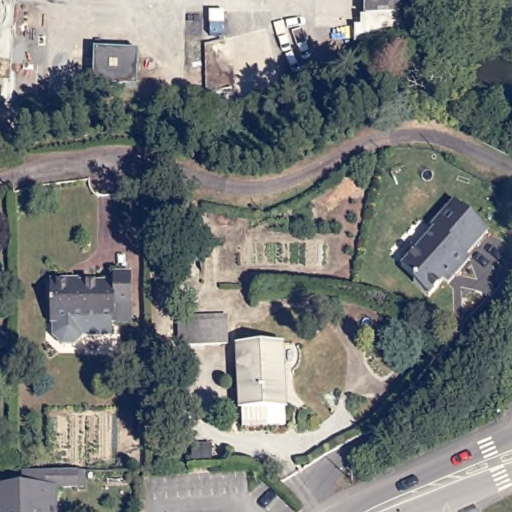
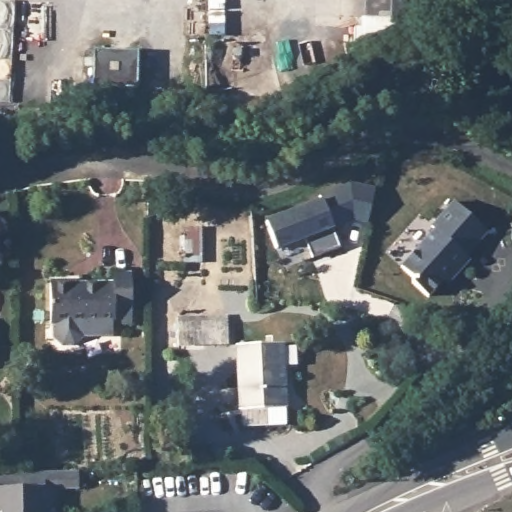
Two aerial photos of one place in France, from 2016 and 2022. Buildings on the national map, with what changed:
unchanged [(418,5),(417,50),(359,49),(360,21),(371,22),(371,0),(429,0),(429,5),(418,5)]
unchanged [(346,41),(343,84),(316,85),(320,41),(346,41)]
unchanged [(137,53),(137,90),(92,89),(93,51),(137,53)]
new [(320,199),(317,194),(349,183),(376,187),(367,223),(353,219),(333,225),(334,229),(330,229),(337,246),(310,256),(305,242),(276,252),(264,220),(320,199)]
unchanged [(485,235),(463,259),(467,263),(453,279),(449,274),(426,299),(411,285),(410,280),(399,269),(432,233),(430,229),(452,205),(485,235)]
unchanged [(114,323),(111,324),(111,336),(80,336),(76,345),(62,346),(52,337),(52,324),(50,324),(50,284),(50,278),(78,278),(77,284),(114,283),(115,273),(130,273),(130,310),(130,323),(114,323)]
unchanged [(231,319),(232,345),(195,346),(195,319),(231,319)]
unchanged [(290,426),(244,427),(240,348),(287,346),(288,379),(290,410),(290,426)]
unchanged [(205,447),(205,462),(185,462),(185,447),(205,447)]
unchanged [(25,494),(25,478),(79,477),(86,477),(86,492),(79,492),(57,493),(57,512),(0,512),(0,494),(25,494)]

